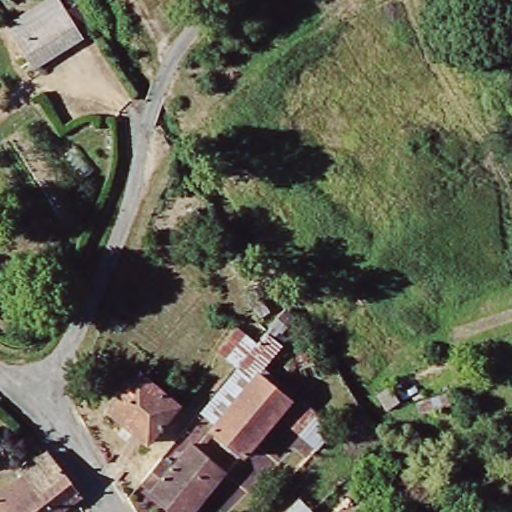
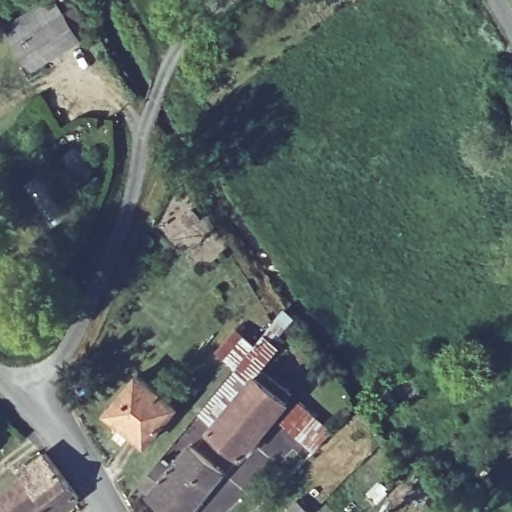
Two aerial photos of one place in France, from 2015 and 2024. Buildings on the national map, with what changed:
unchanged [(54,0),(81,42),(36,71),(8,29),(54,0)]
unchanged [(509,79),(512,84),(512,122),(492,89),(509,79)]
unchanged [(241,369),(240,367),(223,353),(243,328),(260,343),(262,344),(274,329),(288,342),(266,369),(295,393),(289,400),(292,402),(244,456),(213,429),(218,423),(205,412),(241,369)]
unchanged [(110,415),(141,378),(180,411),(149,448),(110,415)]
unchanged [(336,431),(319,449),(286,419),(303,400),(336,431)]
unchanged [(155,492),(143,482),(163,459),(175,468),(194,446),(226,472),(203,499),(193,512),(175,512),(153,494),(155,492)]
unchanged [(82,502),(70,512),(53,512),(30,481),(25,477),(48,459),(82,502)]
unchanged [(0,512),(0,503),(30,481),(53,512),(0,512)]
unchanged [(307,512),(285,512),(296,501),(307,512)]

